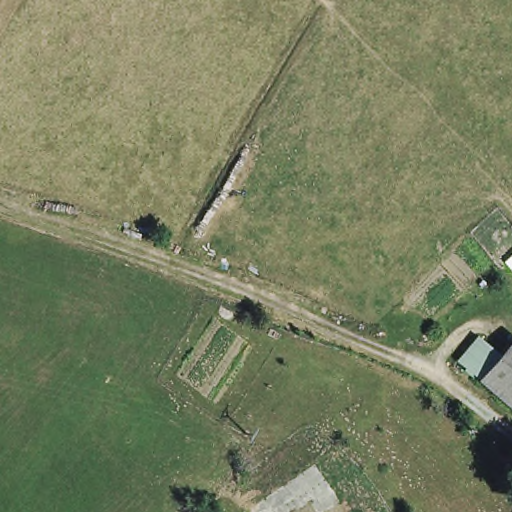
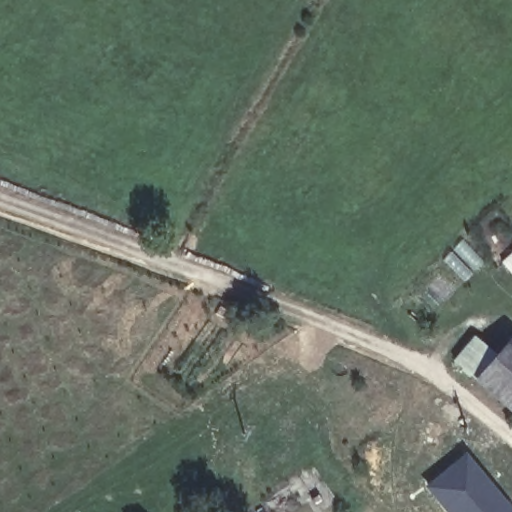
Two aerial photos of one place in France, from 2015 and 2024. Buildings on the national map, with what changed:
unchanged [(478,336),(493,348),(508,332),(512,336),(512,405),(458,359),(478,336)]
new [(512,505),(512,512),(446,512),(423,485),(465,449),(512,505)]

